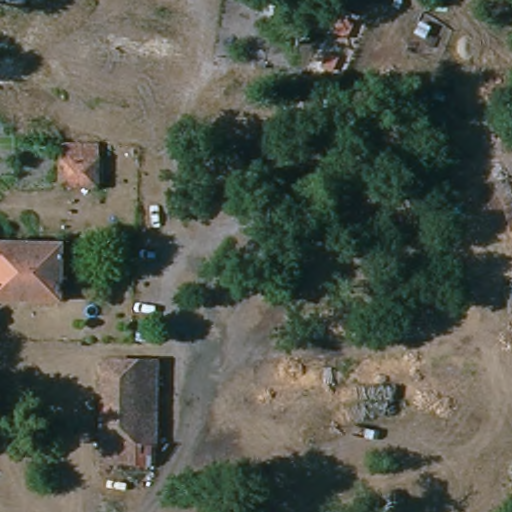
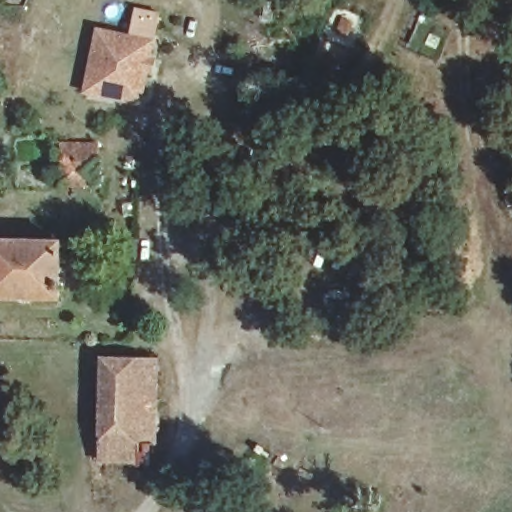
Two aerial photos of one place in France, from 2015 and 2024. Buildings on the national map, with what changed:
new [(155,40),(152,57),(156,59),(151,75),(148,73),(141,106),(82,93),(96,27),(155,40)]
demolished [(138,53),(137,108),(102,108),(106,51),(138,53)]
unchanged [(94,146),(92,186),(62,186),(62,149),(94,146)]
unchanged [(59,236),(58,295),(0,295),(0,238),(59,236)]
unchanged [(153,444),(135,444),(131,459),(118,459),(116,444),(98,443),(103,357),(154,357),(153,444)]

